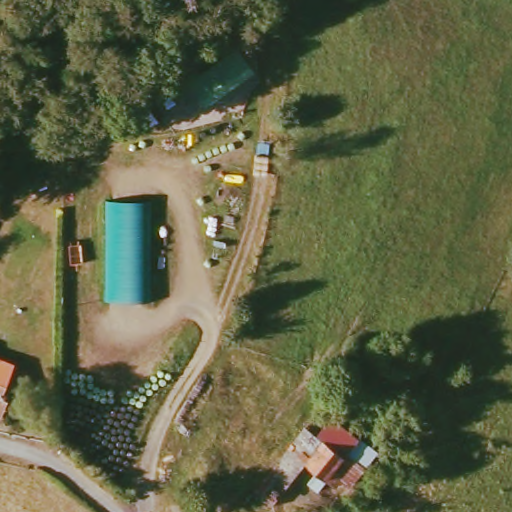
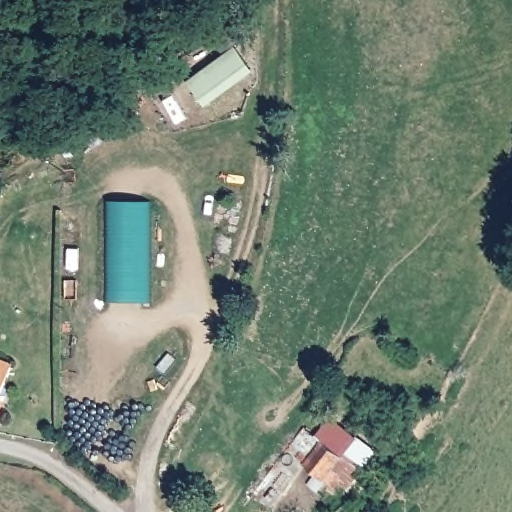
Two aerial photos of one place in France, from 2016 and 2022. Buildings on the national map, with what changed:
unchanged [(245,57),(202,91),(189,76),(232,43),(245,57)]
unchanged [(156,201),(157,302),(110,302),(111,200),(156,201)]
unchanged [(0,401),(0,363),(13,368),(0,401)]
unchanged [(321,480),(311,473),(288,511),(267,497),(297,453),(296,452),(311,429),(327,439),(333,417),(362,438),(357,451),(371,464),(356,485),(350,481),(344,487),(334,480),(327,487),(318,483),(321,480)]

